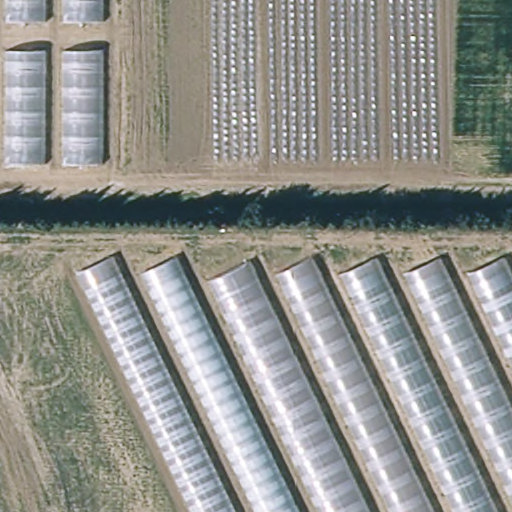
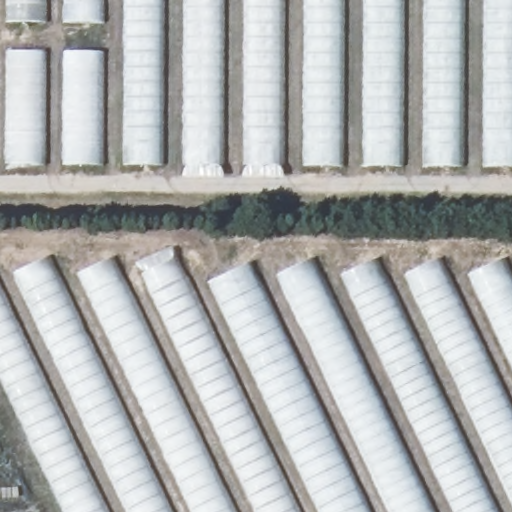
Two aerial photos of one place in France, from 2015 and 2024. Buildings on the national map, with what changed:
unchanged [(105,164),(0,165),(0,0),(105,0),(105,164)]
new [(125,0),(512,0),(512,168),(124,165),(125,0)]
unchanged [(126,280),(178,256),(191,286),(250,260),(259,280),(311,256),(324,279),(377,256),(387,278),(441,256),(451,278),(505,257),(512,272),(512,512),(192,512),(77,272),(114,255),(126,280)]
new [(63,512),(0,377),(0,281),(50,256),(60,278),(77,272),(192,512),(63,512)]

